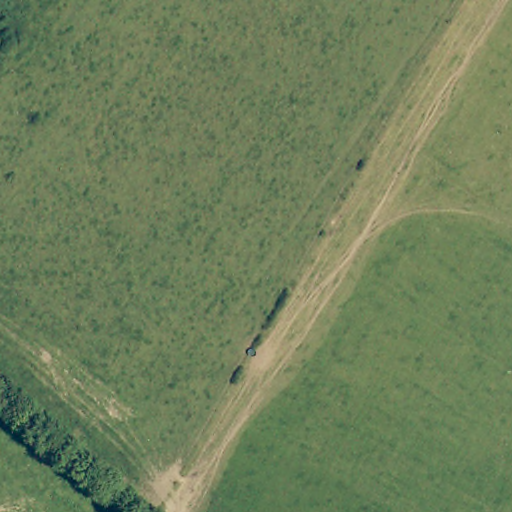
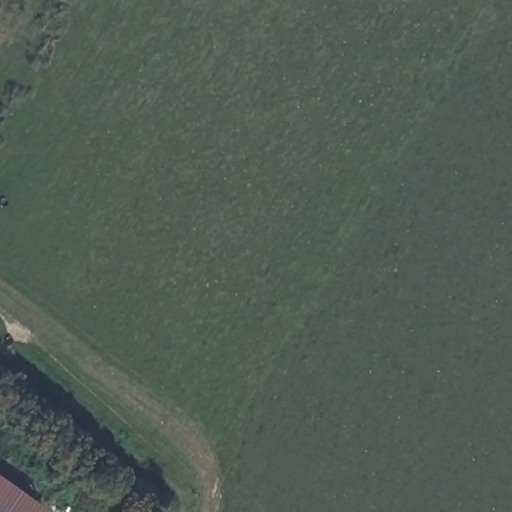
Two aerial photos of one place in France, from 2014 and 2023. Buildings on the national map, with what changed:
new [(45,512),(0,512),(0,480),(45,512)]

